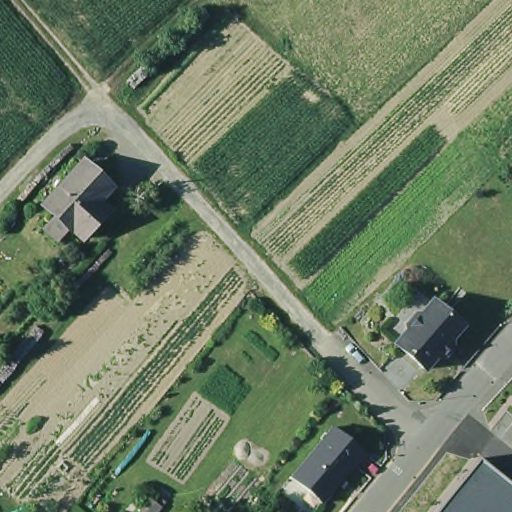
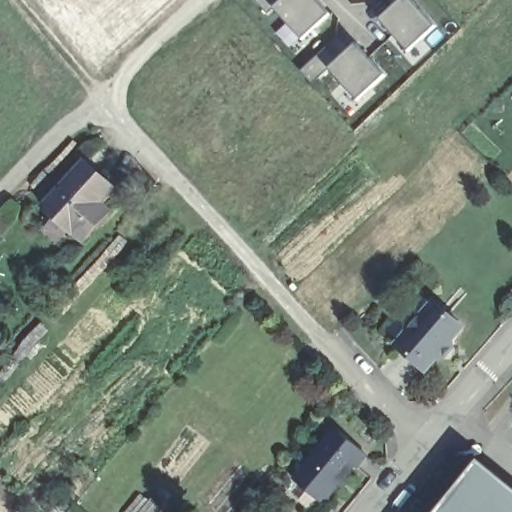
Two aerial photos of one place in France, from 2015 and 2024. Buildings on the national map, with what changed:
new [(327,13),(300,38),(271,8),(265,13),(252,0),(276,0),(270,7),(277,0),(315,0),(327,13)]
new [(406,49),(376,17),(390,4),(387,0),(395,0),(391,4),(395,0),(411,0),(433,24),(406,49)]
new [(353,41),(383,73),(356,99),(326,67),(335,59),(353,41)]
new [(310,83),(298,70),(323,46),(335,58),(326,67),(326,68),(310,83)]
unchanged [(40,228),(50,215),(39,205),(81,160),(110,185),(97,201),(107,209),(79,240),(64,228),(54,239),(40,228)]
unchanged [(407,334),(406,328),(415,318),(421,318),(432,304),(462,330),(448,346),(452,350),(444,360),(439,357),(425,373),(395,347),(407,334)]
unchanged [(330,429),(363,456),(353,468),(351,467),(319,505),(288,481),(330,429)]
unchanged [(512,486),(512,512),(460,512),(494,471),(512,486)]
unchanged [(191,512),(169,512),(178,500),(191,512)]

